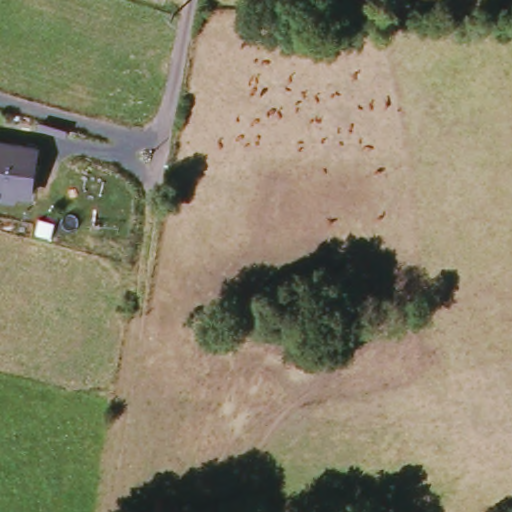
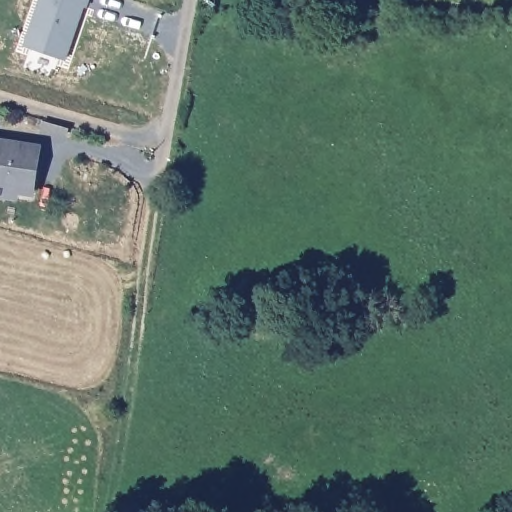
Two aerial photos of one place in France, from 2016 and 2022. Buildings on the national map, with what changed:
new [(65,60),(22,46),(39,0),(88,0),(65,60)]
unchanged [(18,203),(0,201),(0,141),(42,146),(34,198),(19,196),(18,203)]

